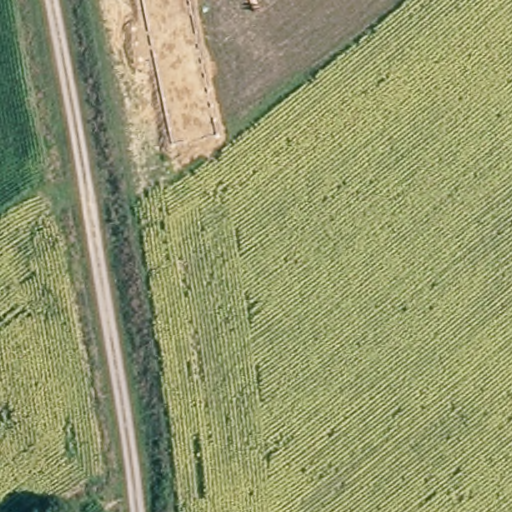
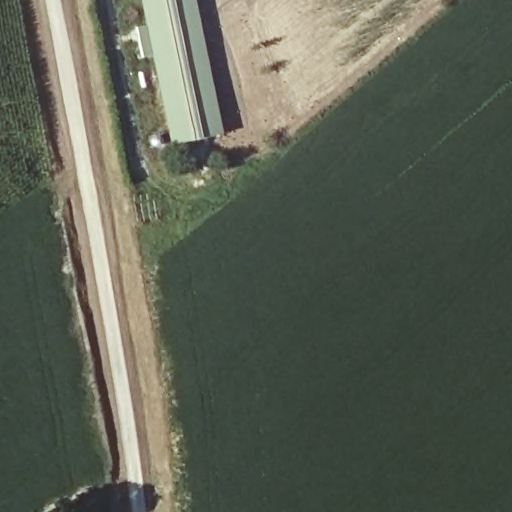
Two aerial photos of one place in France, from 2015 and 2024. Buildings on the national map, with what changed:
new [(217,129),(169,139),(151,49),(137,51),(131,21),(145,19),(141,0),(191,0),(217,129)]

